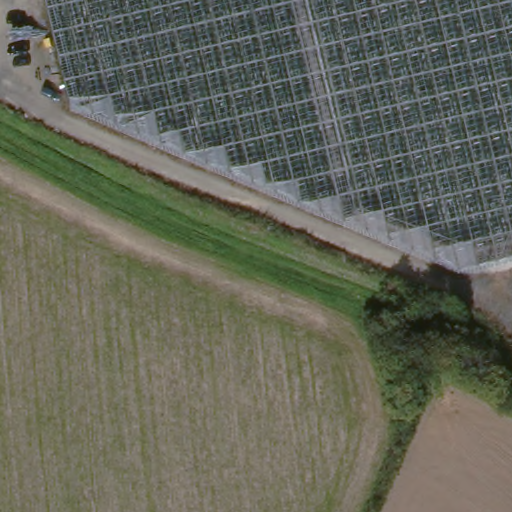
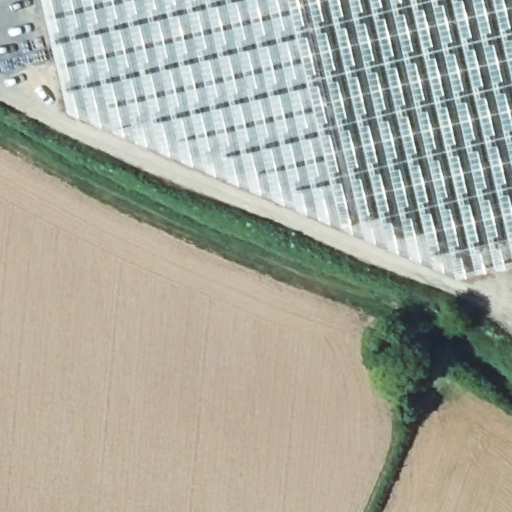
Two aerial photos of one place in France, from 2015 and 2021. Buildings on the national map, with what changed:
unchanged [(499,283),(493,254),(435,270),(124,140),(36,103),(11,0),(512,0),(512,281),(499,283)]

